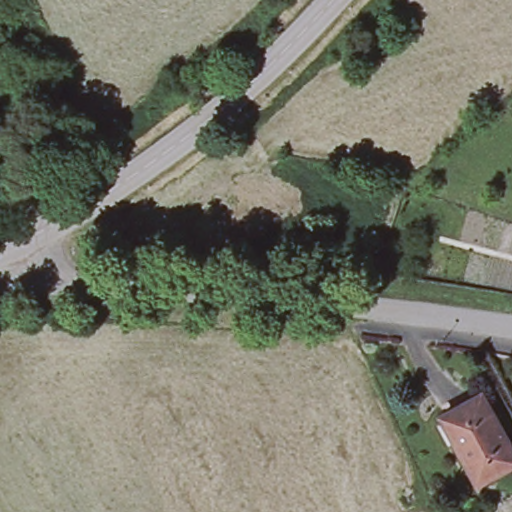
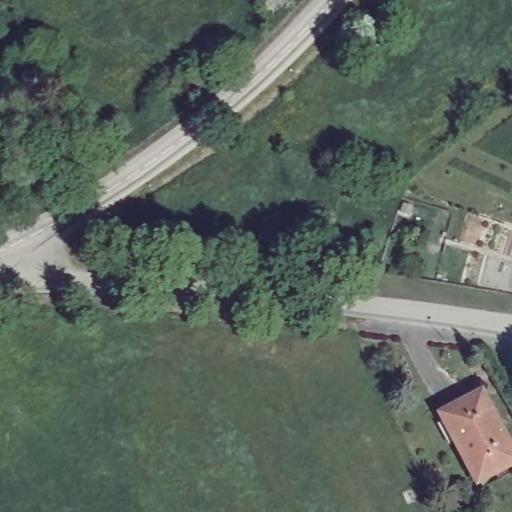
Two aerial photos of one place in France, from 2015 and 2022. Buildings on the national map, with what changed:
unchanged [(485,390),(512,441),(512,464),(480,483),(443,413),(485,390)]

